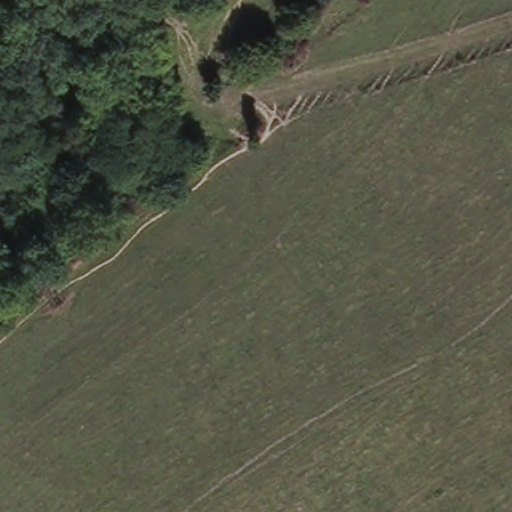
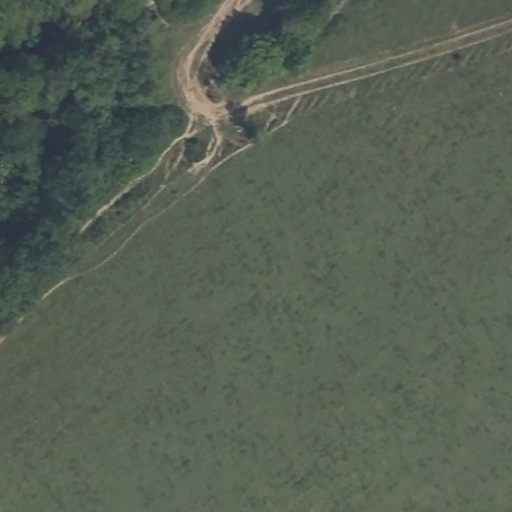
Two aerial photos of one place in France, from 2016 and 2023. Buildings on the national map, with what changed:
unchanged [(137,0),(137,1),(137,2),(137,3),(136,3),(136,4),(135,4),(135,5),(134,5),(134,6),(133,6),(132,6),(132,7),(131,7),(130,7),(129,7),(128,7),(127,7),(126,7),(125,7),(125,6),(124,6),(123,5),(122,5),(122,4),(121,3),(121,2),(120,2),(120,1),(120,0),(137,0)]

